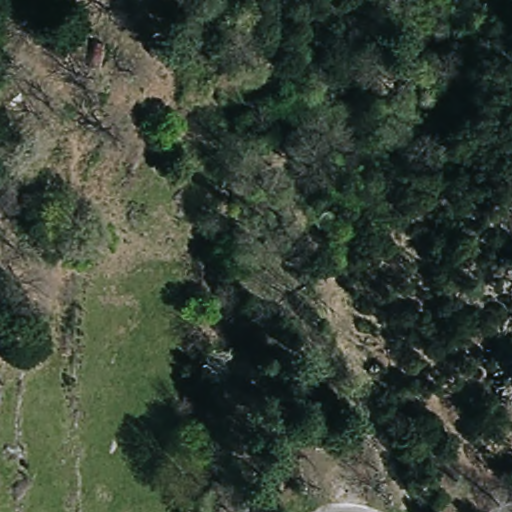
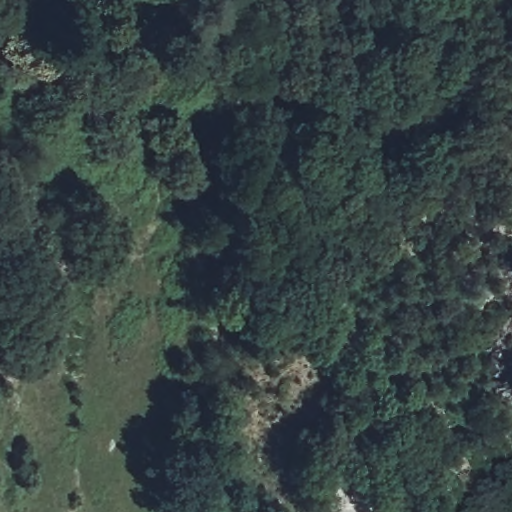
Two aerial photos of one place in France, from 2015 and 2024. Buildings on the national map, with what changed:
[]

